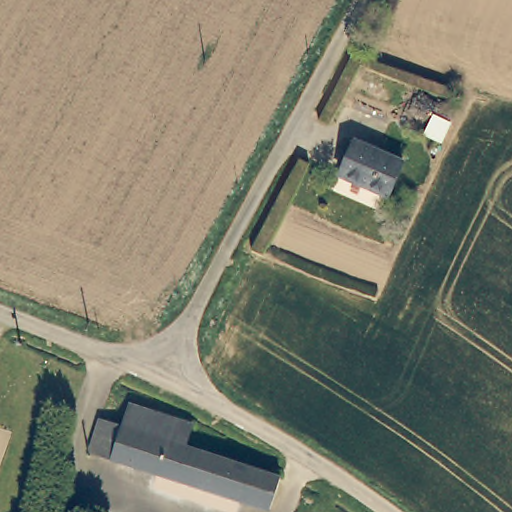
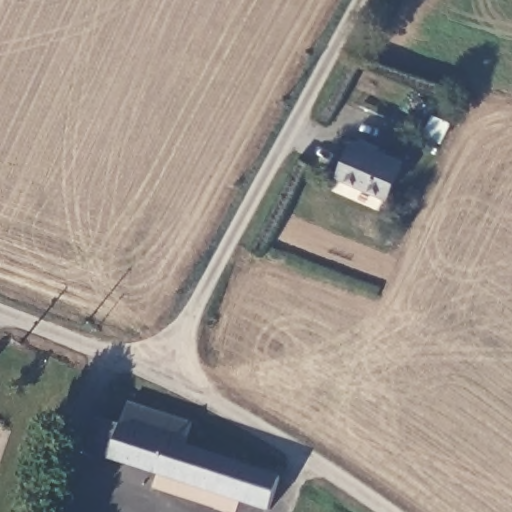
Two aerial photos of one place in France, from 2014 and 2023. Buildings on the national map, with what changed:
unchanged [(397,164),(382,197),(335,174),(352,141),(397,164)]
unchanged [(125,426),(131,405),(192,425),(186,445),(281,475),(270,511),(91,453),(103,418),(125,426)]

